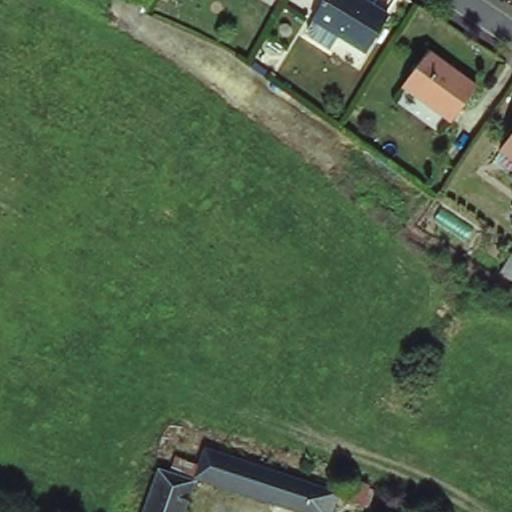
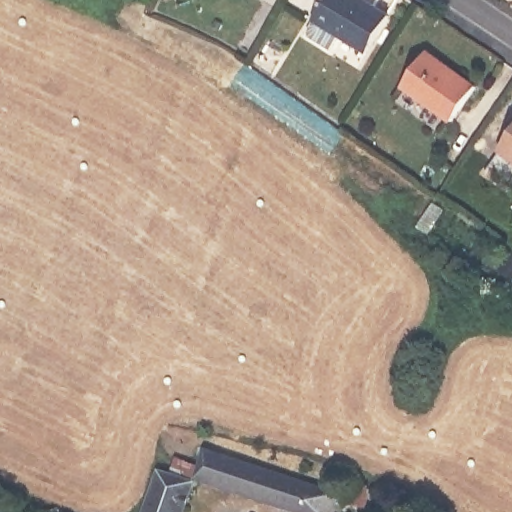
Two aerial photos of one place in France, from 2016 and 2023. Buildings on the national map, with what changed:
unchanged [(328,0),(359,0),(385,16),(361,53),(313,25),(328,0)]
unchanged [(420,49),(481,90),(456,125),(396,84),(420,49)]
unchanged [(512,157),(498,148),(512,129),(512,157)]
unchanged [(308,512),(300,510),(186,482),(195,450),(308,478),(333,484),(327,512),(308,512)]
unchanged [(183,491),(177,512),(141,512),(148,484),(183,491)]

